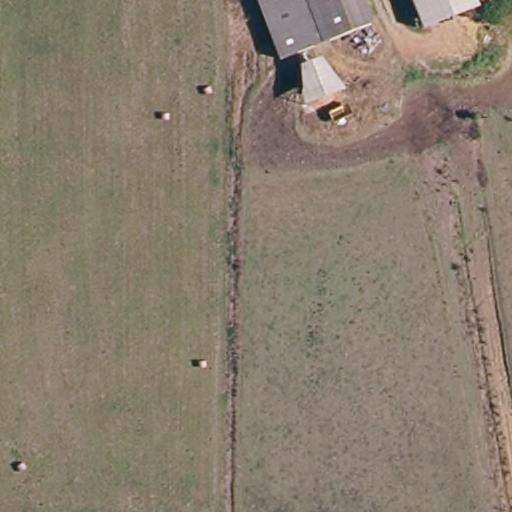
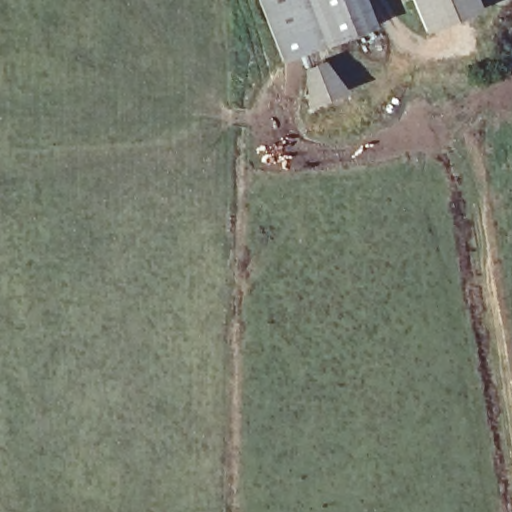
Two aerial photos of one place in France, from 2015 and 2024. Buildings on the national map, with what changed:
unchanged [(284,61),(263,0),(363,0),(372,24),(284,61)]
unchanged [(412,0),(477,0),(481,9),(425,33),(412,0)]
unchanged [(304,106),(302,66),(323,58),(349,89),(304,106)]

